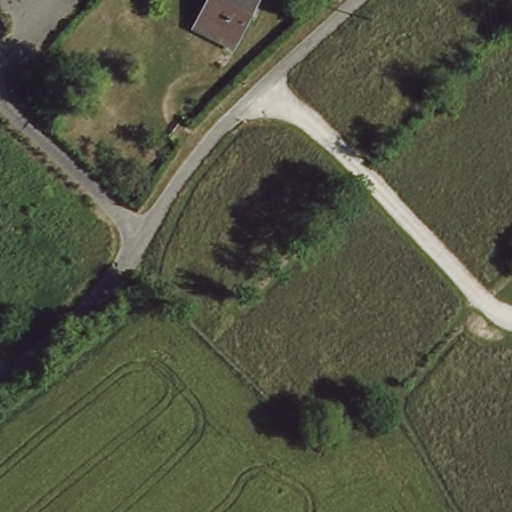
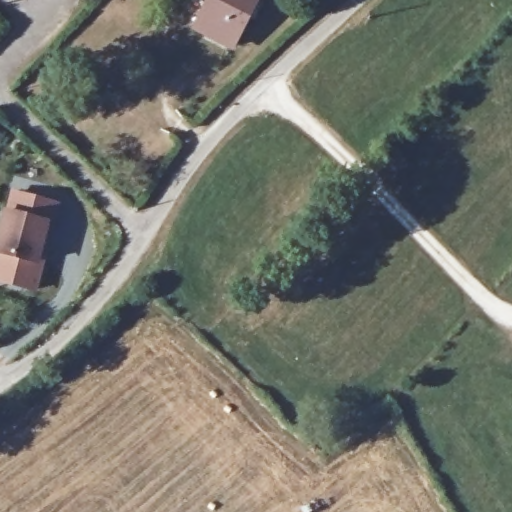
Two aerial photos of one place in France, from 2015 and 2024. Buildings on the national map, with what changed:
unchanged [(193,29),(209,0),(254,0),(229,47),(193,29)]
new [(7,210),(9,210),(47,222),(36,260),(41,262),(33,289),(0,280),(0,232),(7,210)]

